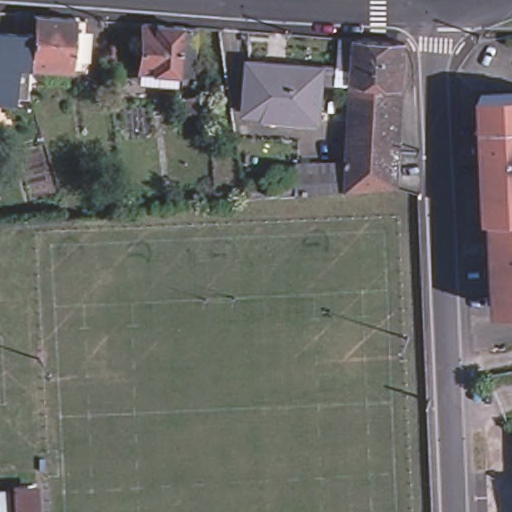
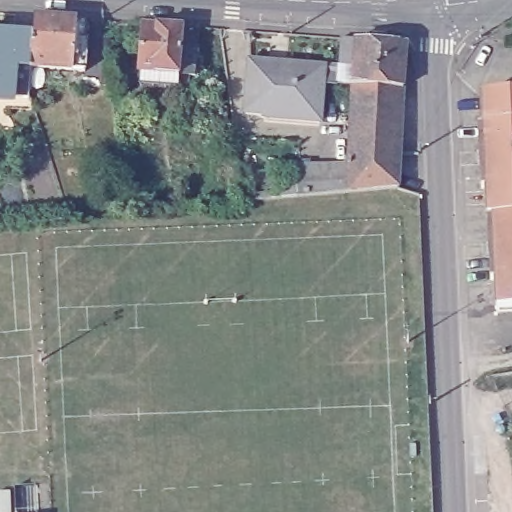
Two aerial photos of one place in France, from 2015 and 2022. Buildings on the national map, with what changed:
unchanged [(90,72),(75,71),(65,71),(24,69),(25,35),(26,17),(68,20),(67,27),(78,28),(77,41),(92,42),(90,72)]
unchanged [(182,82),(167,81),(129,78),(132,30),(169,33),(179,34),(184,53),(182,82)]
unchanged [(24,69),(22,92),(24,98),(0,96),(0,33),(25,35),(24,69)]
unchanged [(351,189),(353,157),(358,80),(339,79),(339,35),(360,37),(407,41),(404,82),(398,185),(351,189)]
unchanged [(319,71),(316,123),(292,121),(291,116),(243,112),(246,64),(319,71)]
unchanged [(480,92),(512,90),(512,214),(489,215),(484,216),(480,92)]
unchanged [(353,157),(351,189),(290,196),(289,164),(353,157)]
unchanged [(489,215),(512,214),(512,308),(493,309),(489,215)]
unchanged [(512,430),(512,446),(510,431),(512,430)]
unchanged [(39,512),(15,512),(14,490),(38,490),(39,512)]

